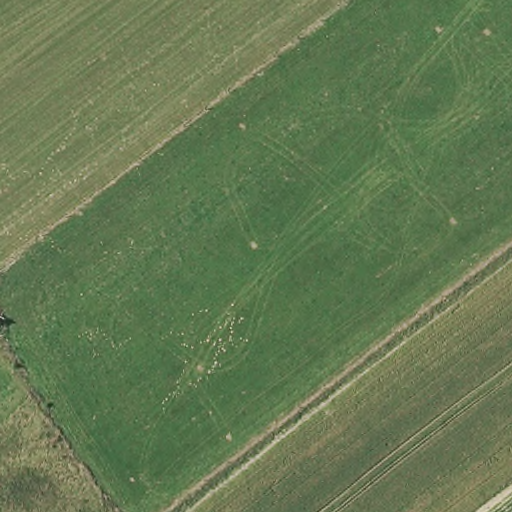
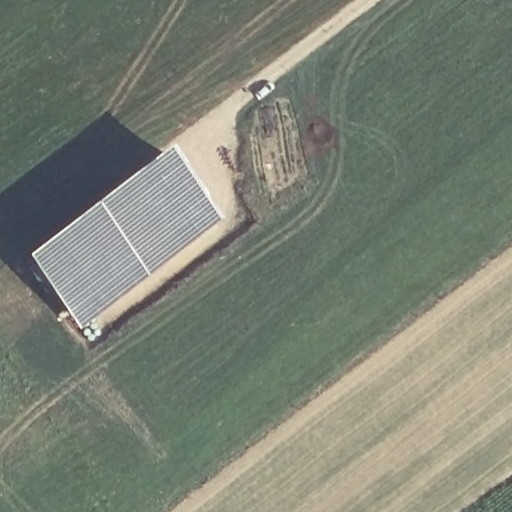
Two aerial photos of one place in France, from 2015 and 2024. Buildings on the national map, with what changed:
new [(225,236),(90,348),(26,272),(166,160),(225,236)]

